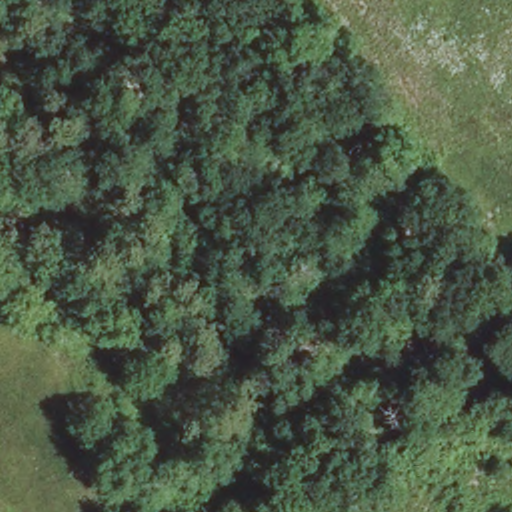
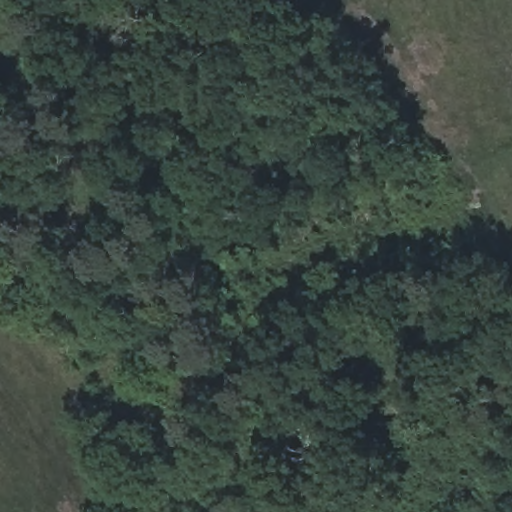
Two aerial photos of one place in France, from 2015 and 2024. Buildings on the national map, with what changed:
[]

